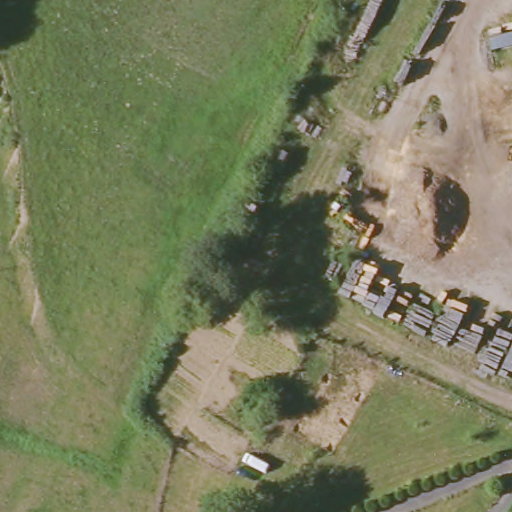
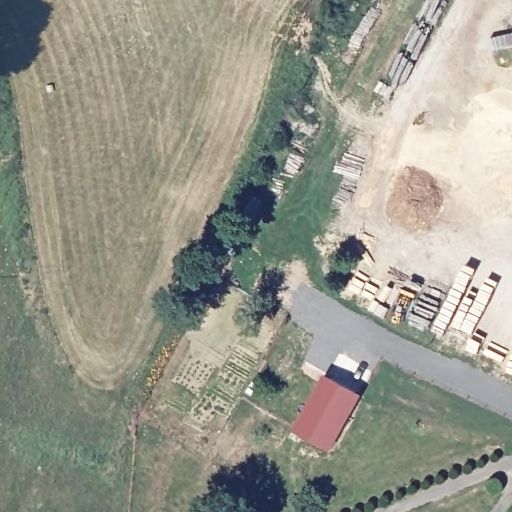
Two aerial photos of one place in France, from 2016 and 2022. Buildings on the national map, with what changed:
unchanged [(506,135),(512,133),(512,167),(506,135)]
new [(295,430),(325,373),(361,393),(330,449),(295,430)]

